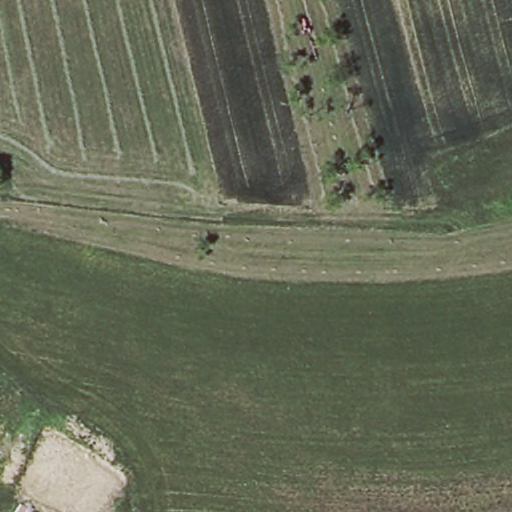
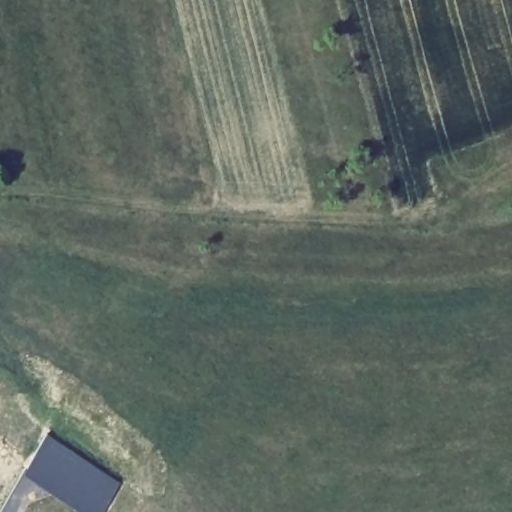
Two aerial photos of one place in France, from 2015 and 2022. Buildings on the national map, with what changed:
new [(104,512),(77,512),(23,478),(46,437),(121,482),(104,512)]

